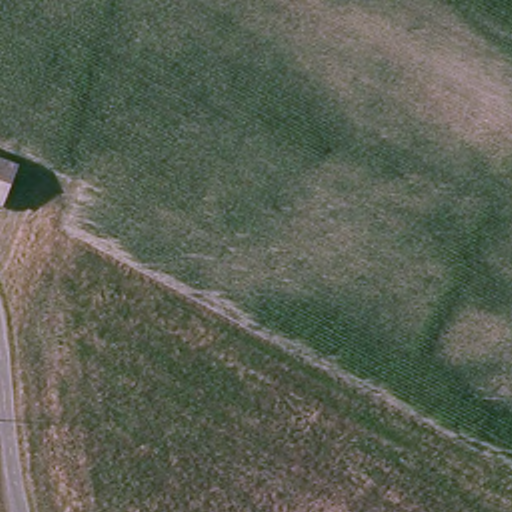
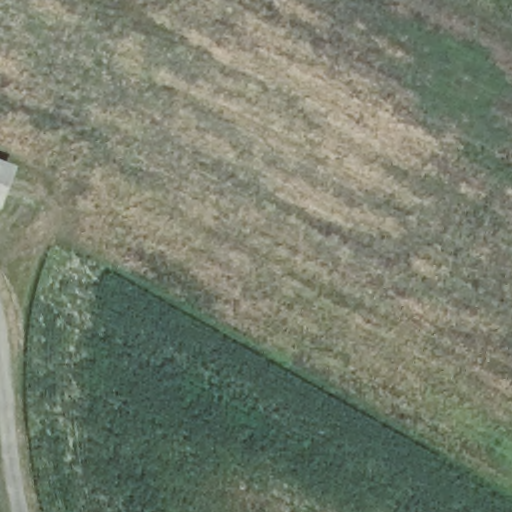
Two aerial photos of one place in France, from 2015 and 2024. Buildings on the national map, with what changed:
unchanged [(1,203),(0,203),(0,159),(8,161),(1,203)]

